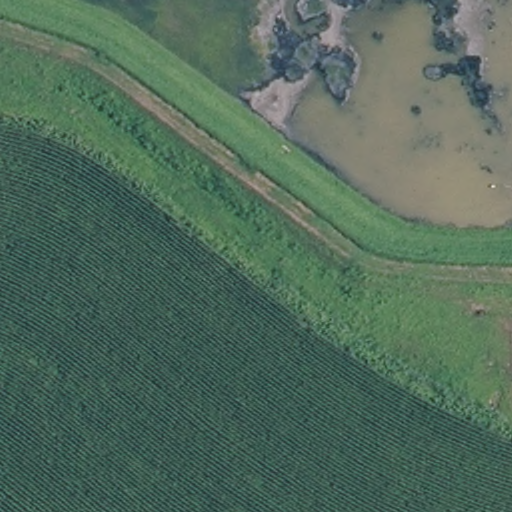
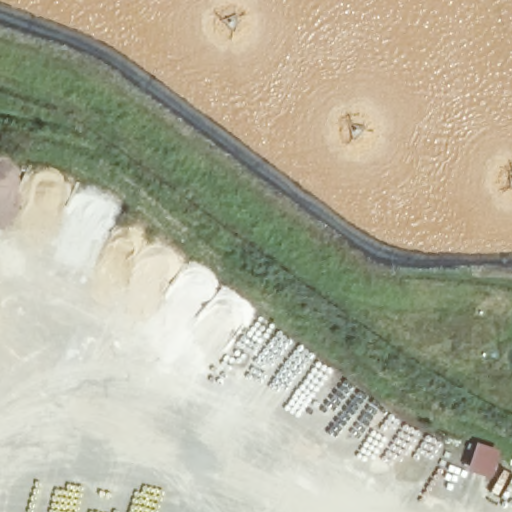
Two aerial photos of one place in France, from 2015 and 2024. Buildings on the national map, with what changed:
[]

